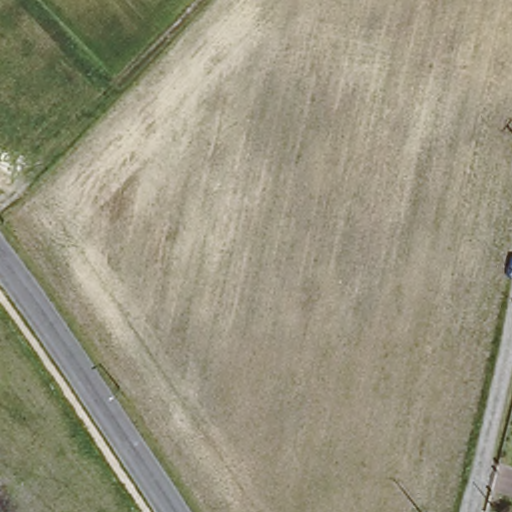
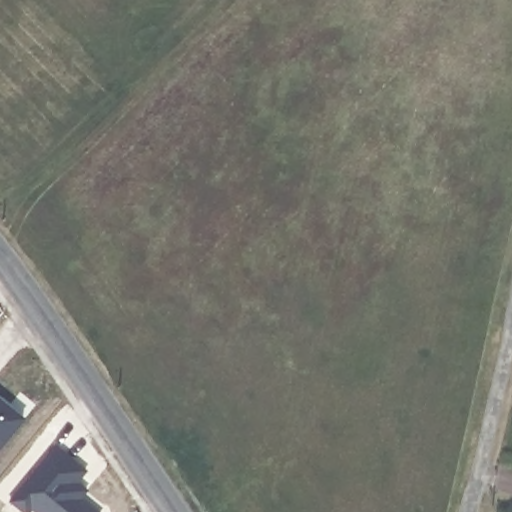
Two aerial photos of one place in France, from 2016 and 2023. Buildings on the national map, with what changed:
new [(20,420),(0,445),(0,404),(20,420)]
new [(53,447),(83,472),(68,490),(93,512),(32,512),(29,509),(27,512),(19,512),(7,502),(53,447)]

